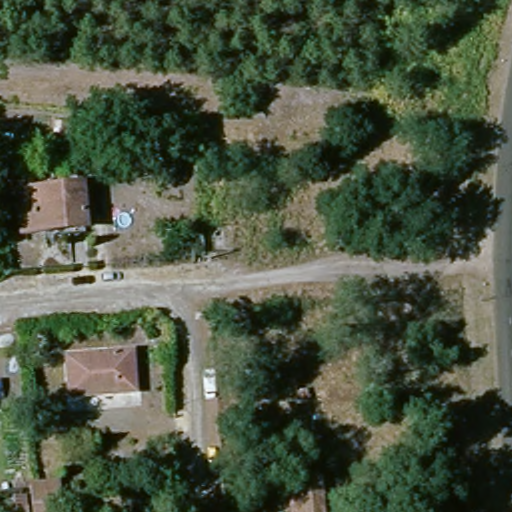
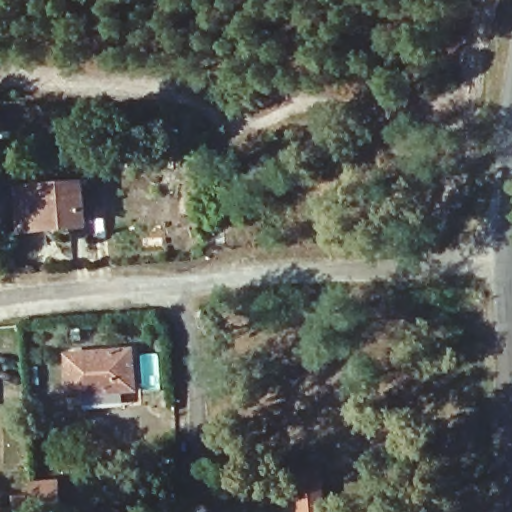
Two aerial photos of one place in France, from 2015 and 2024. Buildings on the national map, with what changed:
unchanged [(86,221),(49,224),(50,231),(26,232),(22,189),(85,181),(86,221)]
unchanged [(140,385),(72,395),(70,359),(135,350),(140,385)]
unchanged [(325,480),(327,512),(304,512),(302,481),(325,480)]
unchanged [(65,512),(37,512),(36,485),(62,482),(65,512)]

